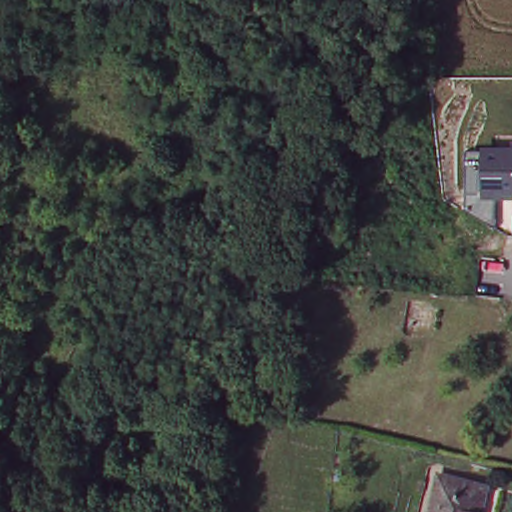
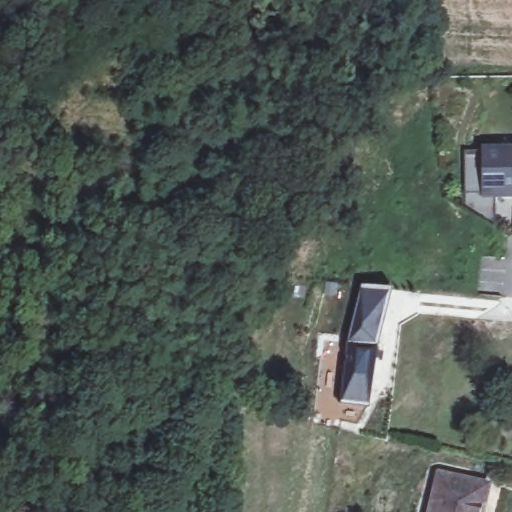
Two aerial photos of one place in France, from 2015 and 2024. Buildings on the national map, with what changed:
unchanged [(494,227),(465,210),(466,152),(482,152),(482,148),(512,148),(512,199),(495,199),(494,227)]
new [(353,278),(355,279),(389,283),(385,321),(379,343),(370,406),(338,403),(341,384),(353,278)]
unchanged [(490,486),(484,512),(434,512),(443,475),(490,486)]

